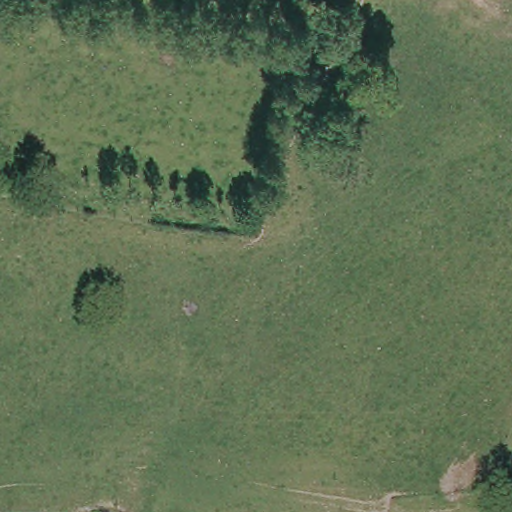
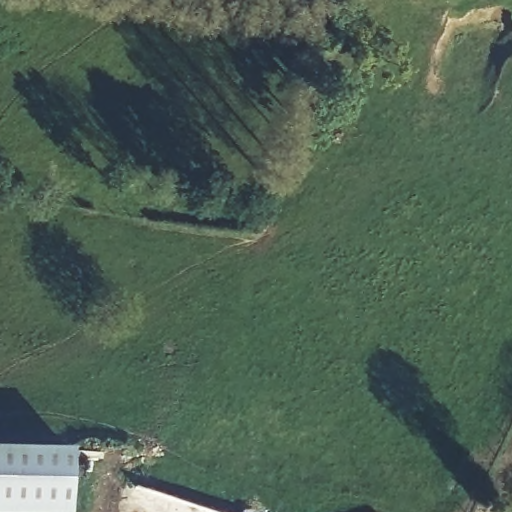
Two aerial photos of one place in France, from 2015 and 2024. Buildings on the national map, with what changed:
new [(70,452),(70,512),(0,512),(0,451),(70,452)]

